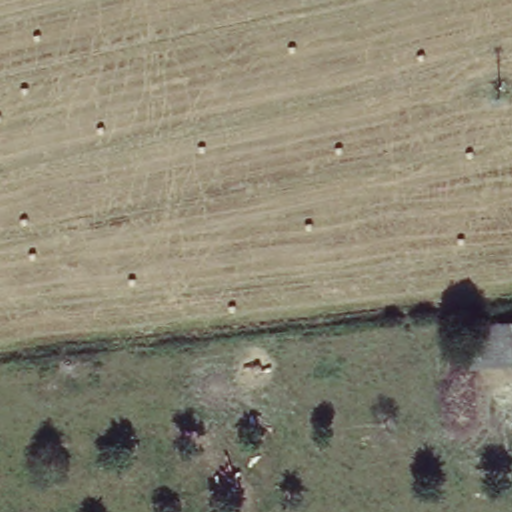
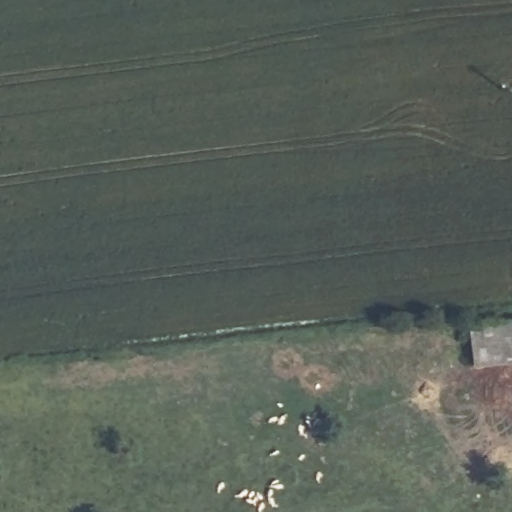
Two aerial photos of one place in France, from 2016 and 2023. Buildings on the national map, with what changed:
unchanged [(468,367),(465,320),(512,317),(512,364),(468,367)]

